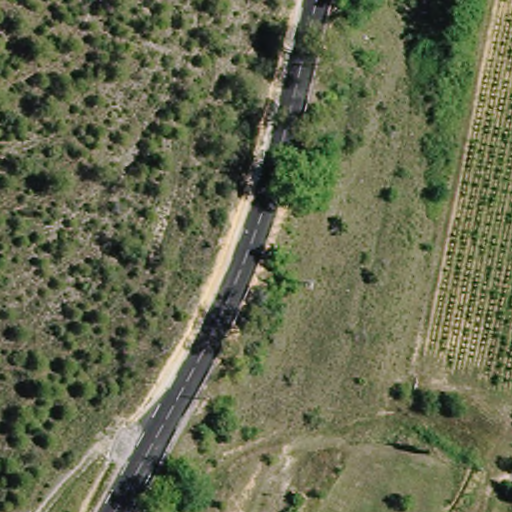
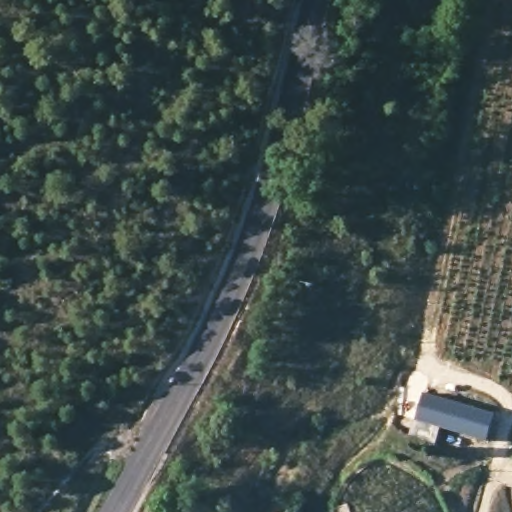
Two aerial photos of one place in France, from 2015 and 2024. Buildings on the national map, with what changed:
new [(493,414),(484,441),(414,421),(422,395),(493,414)]

